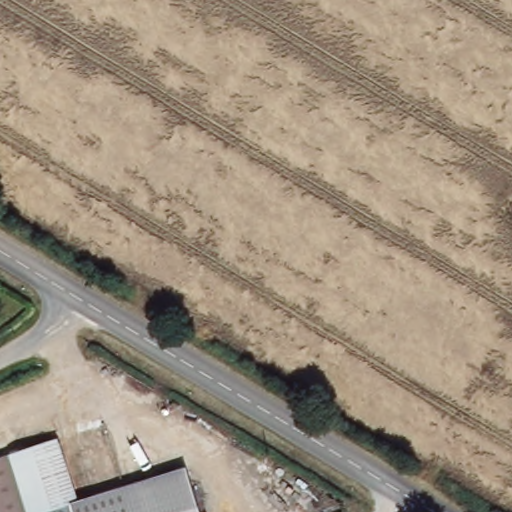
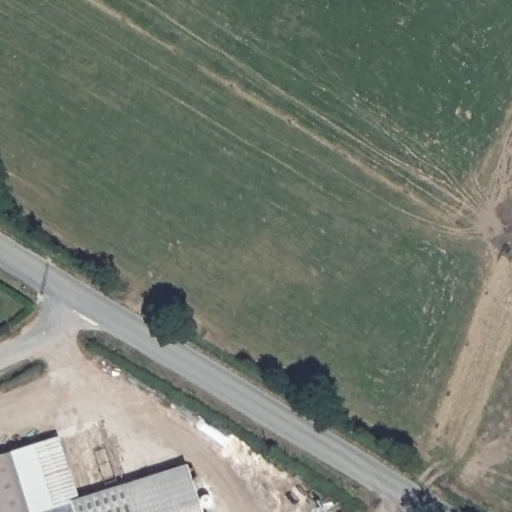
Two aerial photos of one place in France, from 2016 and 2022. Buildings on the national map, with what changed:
unchanged [(77,497),(183,466),(197,512),(74,512),(70,502),(64,503),(46,445),(58,441),(77,497)]
unchanged [(64,503),(33,512),(19,512),(2,458),(46,445),(64,503)]
unchanged [(19,512),(0,512),(0,459),(2,458),(19,512)]
unchanged [(70,502),(74,512),(33,512),(64,503),(70,502)]

